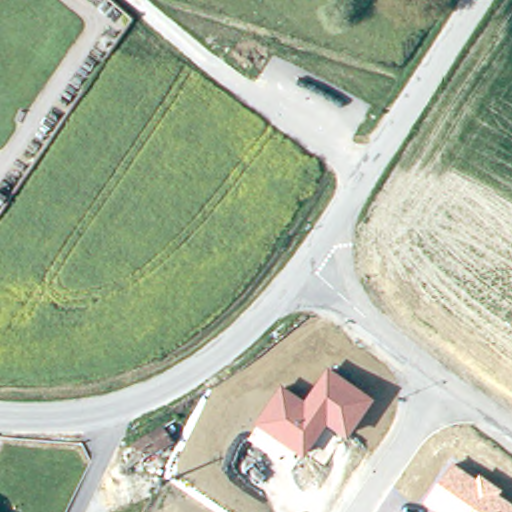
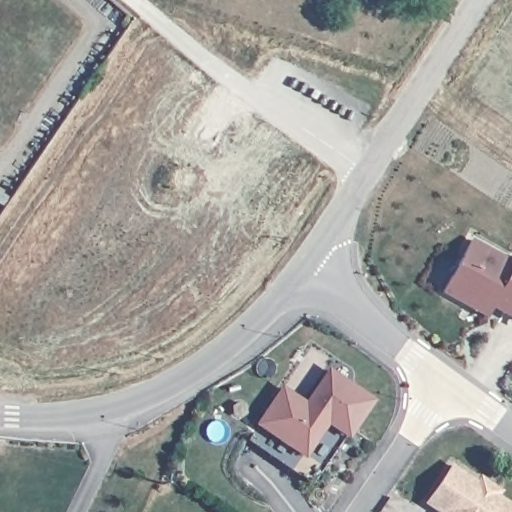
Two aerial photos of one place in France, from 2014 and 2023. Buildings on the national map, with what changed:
new [(487,318),(440,292),(472,236),(512,259),(512,320),(492,309),(487,318)]
unchanged [(372,398),(347,438),(328,425),(302,459),(252,425),(282,385),(303,399),(327,365),(372,398)]
unchanged [(480,474),(503,491),(499,496),(512,505),(512,512),(437,512),(423,502),(453,461),(475,479),(480,474)]

